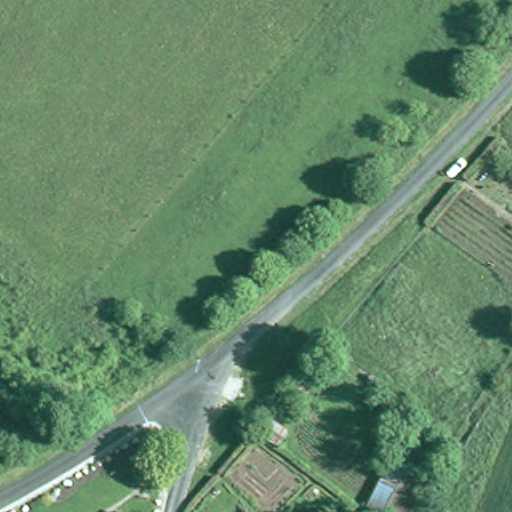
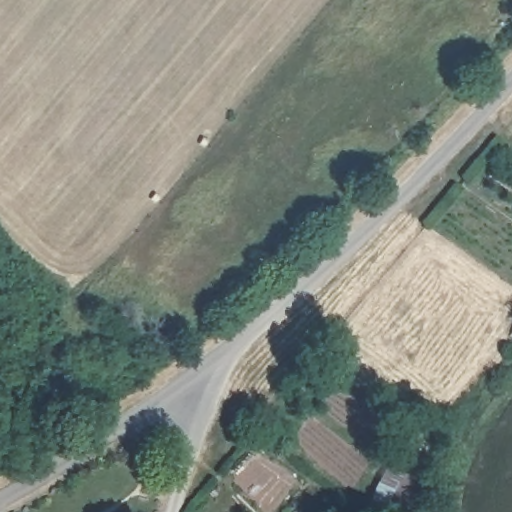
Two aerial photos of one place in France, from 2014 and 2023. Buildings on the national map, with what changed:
unchanged [(312,362),(325,372),(303,398),(290,388),(312,362)]
unchanged [(265,416),(288,434),(278,447),(253,430),(265,416)]
unchanged [(433,477),(416,512),(400,512),(387,505),(405,464),(433,477)]

